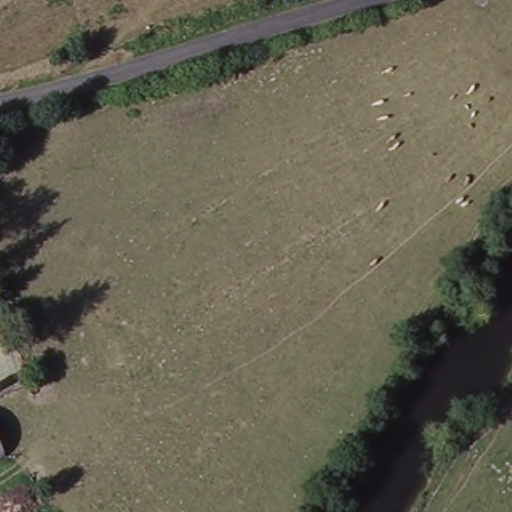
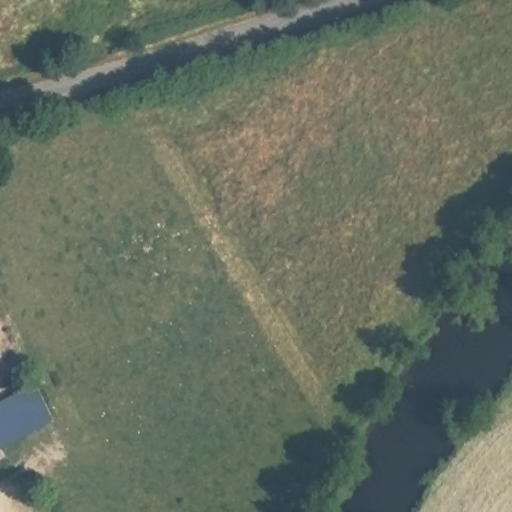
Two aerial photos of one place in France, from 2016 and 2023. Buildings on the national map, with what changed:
new [(0,404),(33,386),(55,419),(1,449),(0,446),(0,404)]
unchanged [(0,460),(0,447),(6,457),(0,460)]

